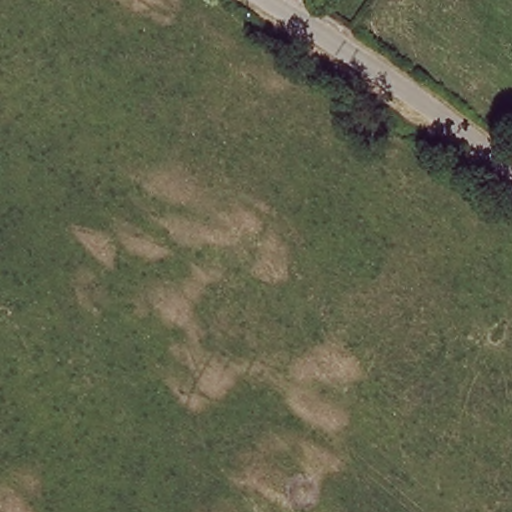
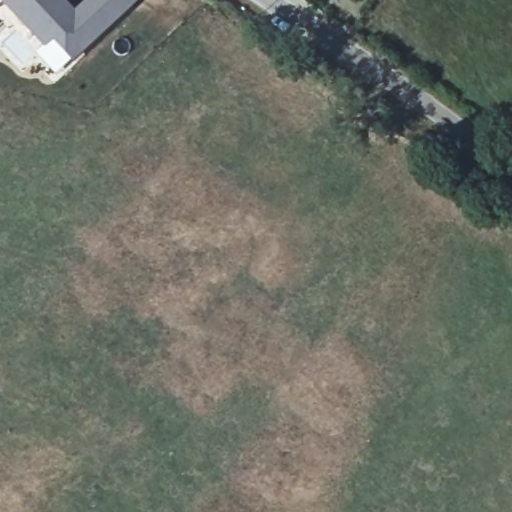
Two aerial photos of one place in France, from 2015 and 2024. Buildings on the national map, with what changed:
new [(89,0),(138,0),(74,61),(54,39),(46,46),(3,0),(63,0),(76,14),(89,0)]

